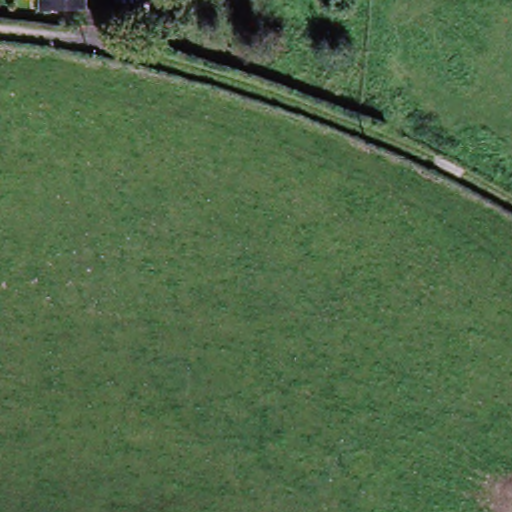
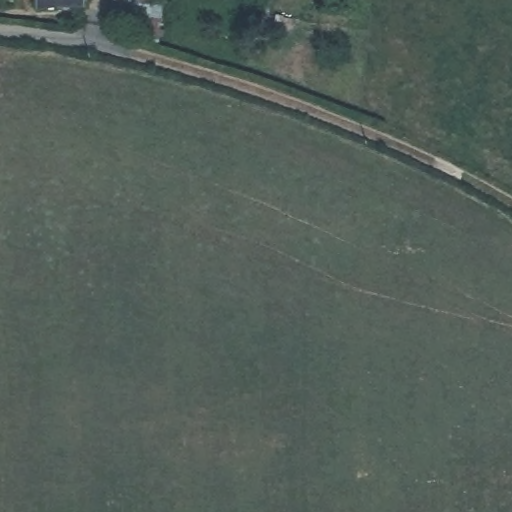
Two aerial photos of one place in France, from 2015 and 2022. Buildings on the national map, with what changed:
unchanged [(70,17),(32,19),(31,0),(72,0),(73,17),(70,17)]

